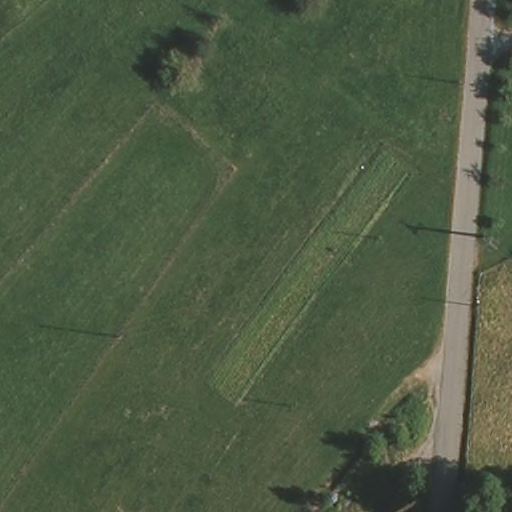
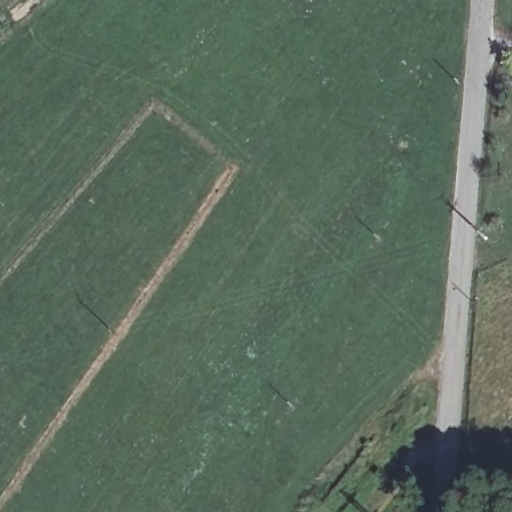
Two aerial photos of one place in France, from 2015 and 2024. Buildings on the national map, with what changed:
unchanged [(420,445),(403,470),(376,452),(393,427),(420,445)]

